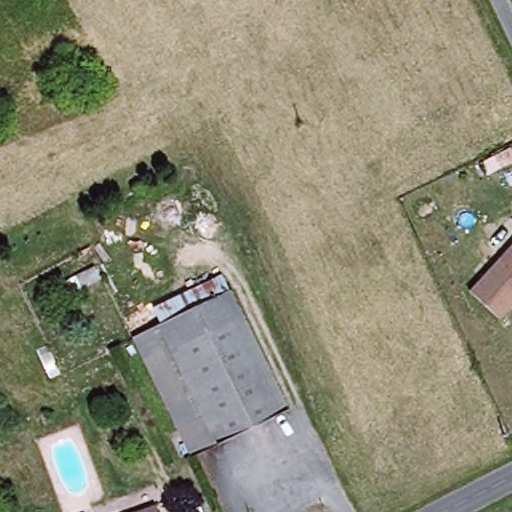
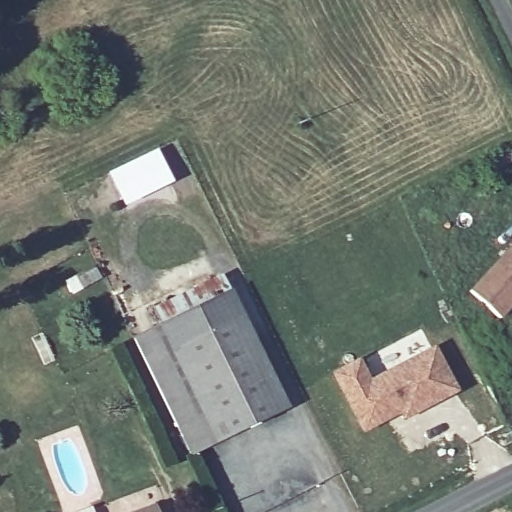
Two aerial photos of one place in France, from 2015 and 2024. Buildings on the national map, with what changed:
unchanged [(496,315),(466,288),(512,237),(512,297),(496,315)]
unchanged [(199,450),(143,333),(214,298),(272,413),(199,450)]
new [(398,412),(361,433),(330,374),(358,358),(368,379),(433,346),(455,390),(402,419),(398,412)]
unchanged [(160,507),(162,512),(145,512),(160,507)]

